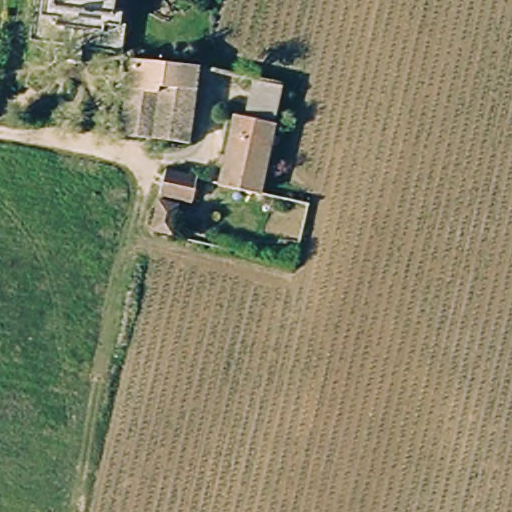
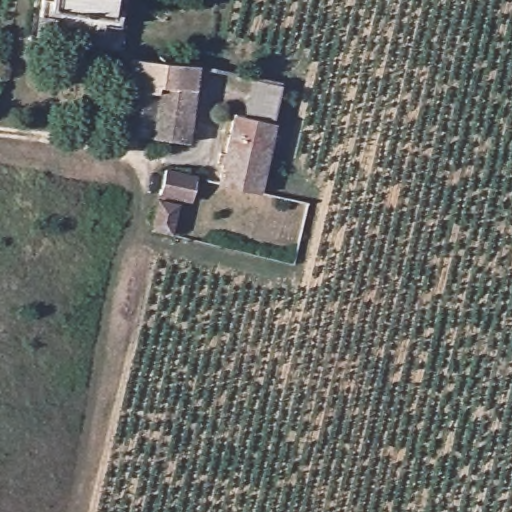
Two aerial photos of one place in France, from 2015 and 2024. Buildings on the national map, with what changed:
unchanged [(106,2),(114,3),(112,21),(97,18),(96,25),(50,18),(50,11),(36,8),(37,0),(106,0),(106,2)]
unchanged [(196,112),(193,144),(123,137),(131,66),(200,69),(196,112)]
unchanged [(257,82),(286,87),(278,128),(247,122),(257,82)]
unchanged [(264,196),(223,187),(237,120),(247,122),(278,128),(276,137),(283,139),(281,146),(274,145),(265,193),(264,196)]
unchanged [(197,175),(191,202),(158,194),(165,167),(197,175)]
unchanged [(149,227),(155,202),(177,207),(171,234),(153,229),(149,227)]

